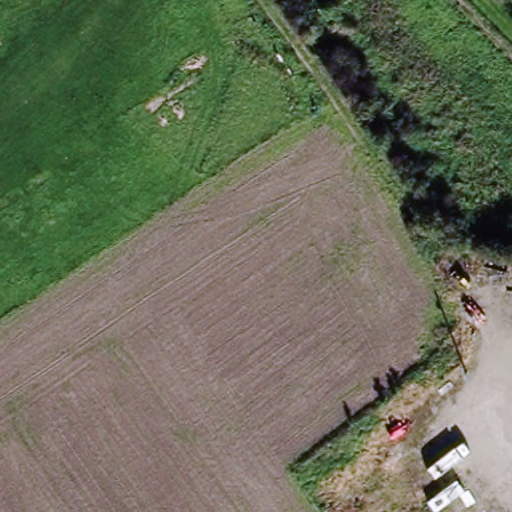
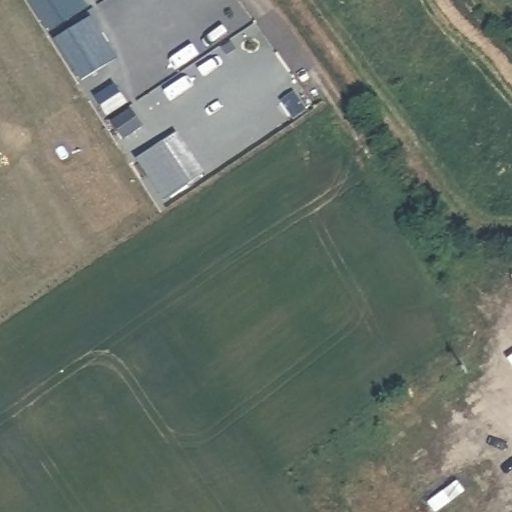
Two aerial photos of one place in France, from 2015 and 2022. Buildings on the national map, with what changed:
new [(49,33),(28,0),(84,0),(89,9),(49,33)]
new [(93,16),(119,59),(81,83),(54,40),(93,16)]
new [(164,143),(191,184),(164,202),(136,160),(164,143)]

